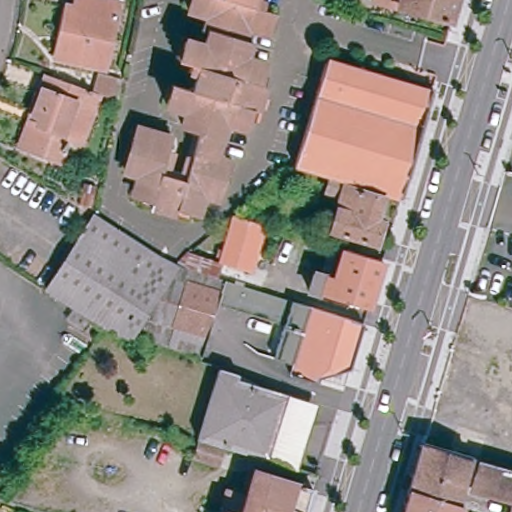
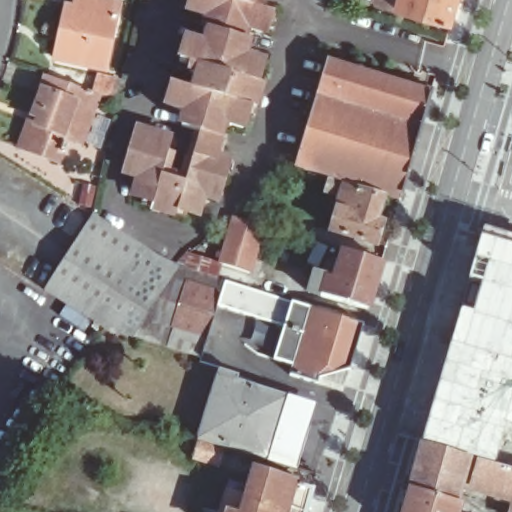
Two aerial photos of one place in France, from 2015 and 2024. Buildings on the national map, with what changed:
unchanged [(120,8),(106,74),(55,62),(59,46),(67,10),(74,11),(76,0),(83,0),(120,8)]
unchanged [(258,3),(264,5),(262,11),(275,15),(268,36),(258,33),(247,41),(245,48),(251,50),(248,57),(254,66),(266,70),(261,90),(266,92),(259,117),(252,116),(247,135),(235,131),(225,136),(220,155),(224,164),(232,166),(221,204),(213,201),(205,206),(201,219),(183,213),(182,220),(158,211),(159,205),(139,200),(143,187),(136,177),(131,176),(143,133),(177,144),(168,177),(189,185),(203,134),(184,129),(186,121),(181,112),(170,109),(176,90),(188,94),(195,90),(197,82),(191,80),(194,70),(182,66),(187,47),(198,50),(207,46),(210,38),(206,37),(208,30),(208,16),(198,13),(201,0),(259,0),(258,3)]
unchanged [(452,23),(372,0),(458,0),(452,23)]
unchanged [(400,199),(382,193),(295,166),(328,57),(434,88),(400,199)]
unchanged [(44,116),(54,90),(58,79),(66,81),(96,92),(93,100),(99,103),(86,137),(73,132),(63,160),(38,150),(32,148),(44,116)]
unchanged [(101,94),(107,80),(122,86),(116,100),(101,94)]
unchanged [(374,220),(380,223),(374,245),(330,231),(340,196),(327,192),(330,180),(350,186),(350,189),(380,199),(374,220)]
unchanged [(249,278),(217,269),(232,221),(263,230),(249,278)]
unchanged [(218,314),(217,315),(200,361),(113,335),(107,332),(45,295),(92,222),(160,265),(177,270),(188,258),(200,245),(216,251),(211,265),(207,280),(228,286),(219,310),(218,314)]
new [(512,246),(512,428),(508,426),(496,465),(479,460),(445,450),(422,443),(481,237),(512,246)]
unchanged [(372,311),(327,296),(332,279),(340,281),(349,250),(386,261),(372,311)]
unchanged [(309,341),(217,315),(218,314),(219,310),(228,286),(297,307),(317,314),(309,341)]
unchanged [(350,375),(322,381),(320,388),(279,376),(289,345),(300,348),(296,363),(302,365),(309,341),(317,314),(363,330),(350,375)]
demolished [(512,392),(476,381),(471,375),(476,357),(512,368),(512,392)]
unchanged [(193,463),(198,445),(217,375),(246,382),(246,384),(267,391),(292,400),(270,466),(222,452),(217,470),(193,463)]
unchanged [(270,466),(292,400),(317,408),(298,475),(270,466)]
unchanged [(457,504),(407,490),(422,443),(445,450),(479,460),(512,470),(512,498),(462,484),(457,504)]
unchanged [(250,512),(253,503),(247,501),(255,478),(314,495),(309,512),(250,512)]
unchanged [(457,504),(462,506),(460,512),(400,512),(407,490),(457,504)]
unchanged [(512,512),(511,512),(512,507),(512,512)]
unchanged [(238,512),(228,512),(229,509),(238,512)]

